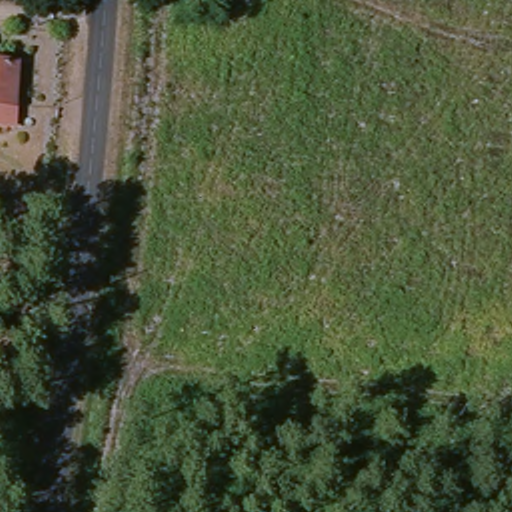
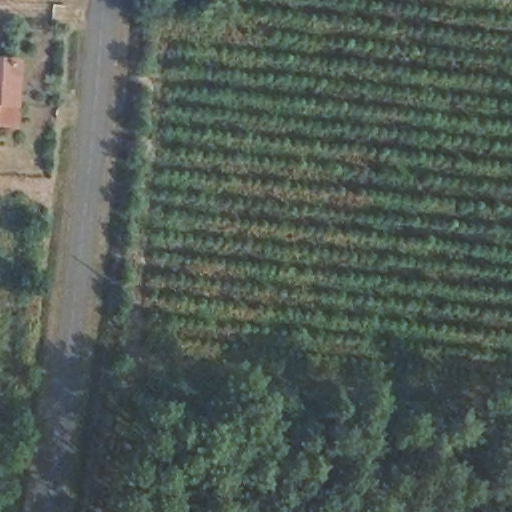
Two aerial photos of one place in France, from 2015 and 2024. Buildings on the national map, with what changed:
unchanged [(16,116),(0,116),(0,54),(18,55),(16,116)]

